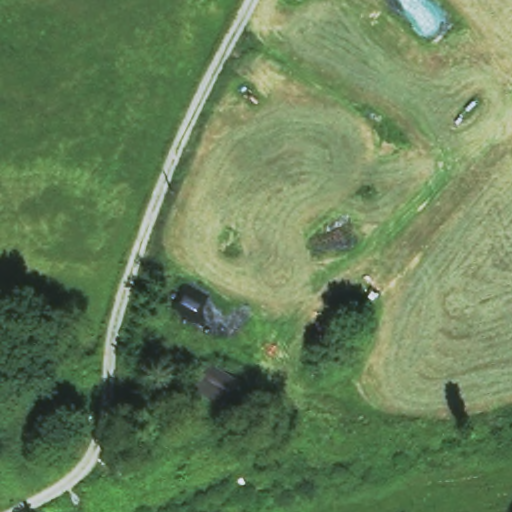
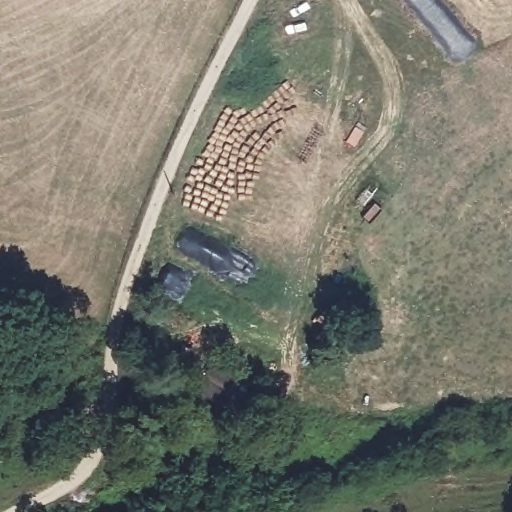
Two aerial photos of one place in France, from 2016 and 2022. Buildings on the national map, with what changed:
unchanged [(203,363),(232,378),(217,404),(189,390),(203,363)]

